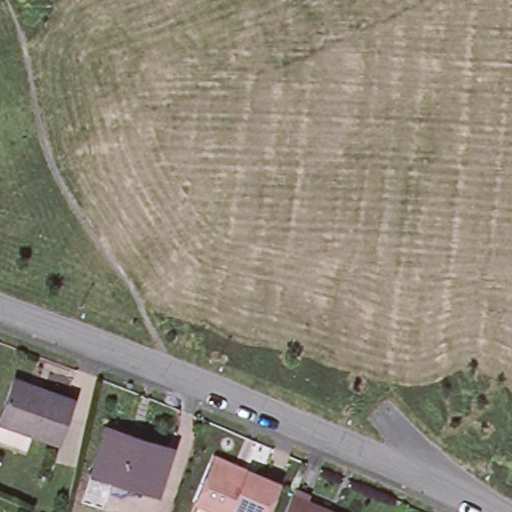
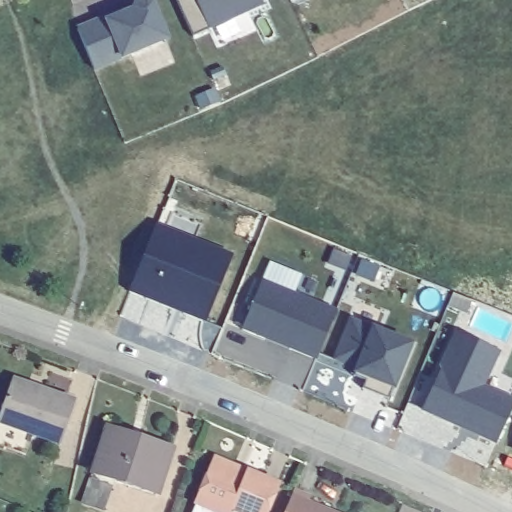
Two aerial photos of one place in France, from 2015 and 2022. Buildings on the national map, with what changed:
new [(121,60),(95,71),(77,27),(133,4),(143,0),(152,0),(155,1),(170,41),(121,60)]
new [(194,35),(178,0),(263,0),(265,2),(194,35)]
new [(206,323),(128,291),(156,222),(234,255),(206,323)]
new [(337,310),(318,357),(244,328),(264,279),(337,310)]
new [(361,365),(339,355),(355,316),(415,340),(392,396),(366,385),(369,378),(357,373),(359,370),(361,365)]
new [(500,350),(484,388),(512,400),(512,411),(497,445),(421,410),(440,368),(455,332),(500,350)]
unchanged [(0,411),(12,376),(14,372),(42,382),(74,393),(59,436),(33,427),(26,447),(0,439),(0,411)]
unchanged [(156,493),(101,475),(91,472),(106,425),(107,420),(142,430),(140,436),(172,446),(156,493)]
unchanged [(231,505),(228,512),(227,512),(192,496),(210,459),(213,452),(246,466),(253,468),(277,478),(273,490),(263,512),(246,512),(231,505)]
unchanged [(310,495),(325,501),(323,506),(336,512),(302,512),(310,495)]

